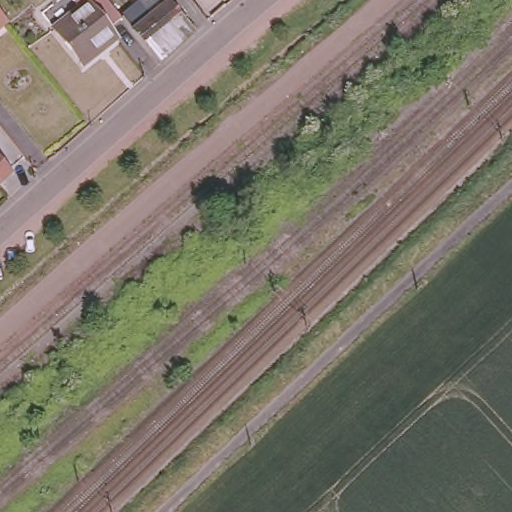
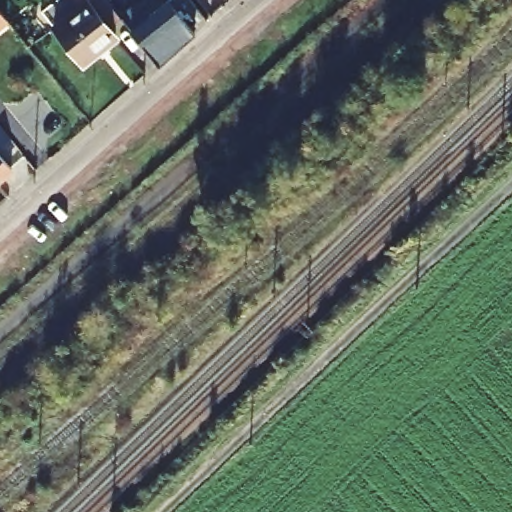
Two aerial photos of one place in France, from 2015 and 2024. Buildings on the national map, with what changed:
unchanged [(113,42),(82,69),(54,35),(78,14),(66,0),(102,0),(120,23),(106,34),(113,42)]
unchanged [(164,0),(165,1),(167,0),(172,0),(175,3),(180,0),(183,0),(207,29),(159,70),(120,23),(149,0),(164,0)]
unchanged [(8,21),(0,27),(0,11),(8,21)]
unchanged [(10,171),(0,180),(0,159),(10,171)]

